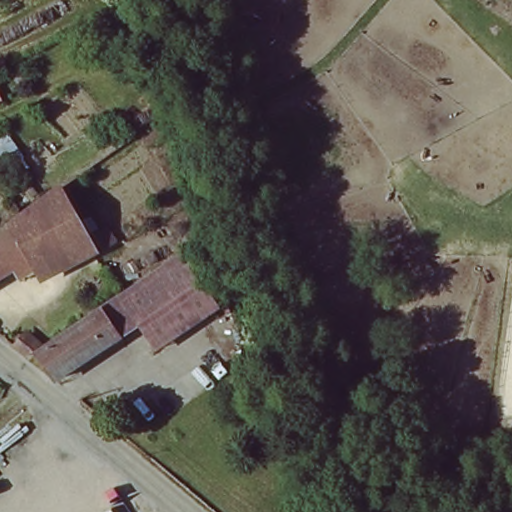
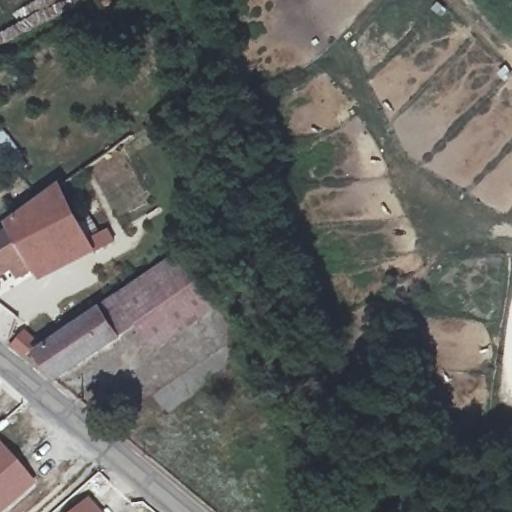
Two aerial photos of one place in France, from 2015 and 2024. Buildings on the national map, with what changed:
unchanged [(27,165),(0,184),(0,130),(2,129),(27,165)]
unchanged [(22,265),(15,255),(0,265),(0,232),(8,227),(6,223),(24,210),(52,190),(55,187),(84,230),(22,265)]
new [(109,229),(115,241),(91,254),(84,242),(109,229)]
unchanged [(105,310),(188,257),(224,308),(160,351),(143,326),(123,338),(105,310)]
unchanged [(59,379),(38,353),(76,328),(105,310),(123,338),(59,379)]
new [(36,483),(2,512),(0,512),(0,442),(36,483)]
new [(87,495),(102,512),(68,512),(87,495)]

